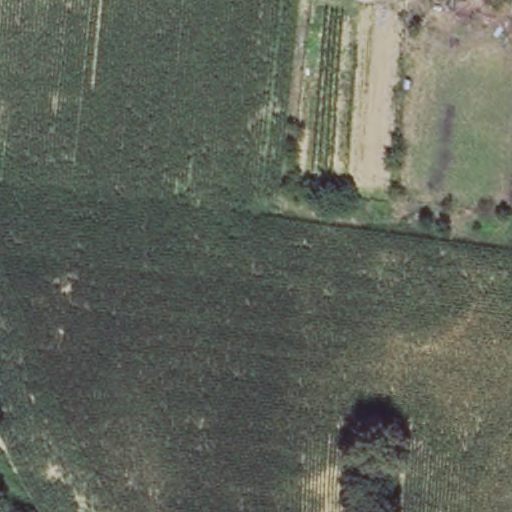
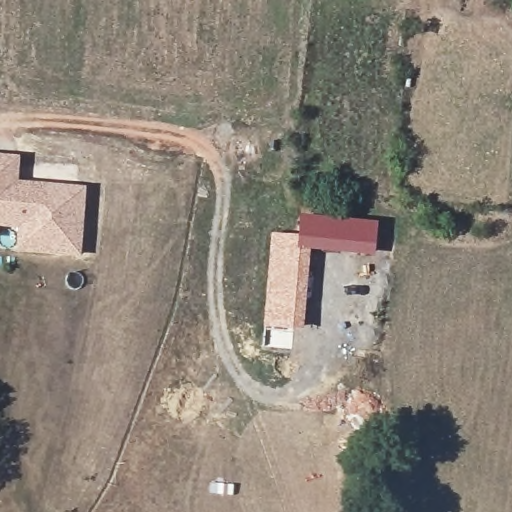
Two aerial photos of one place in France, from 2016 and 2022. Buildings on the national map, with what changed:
new [(19,182),(87,187),(81,256),(16,253),(17,231),(0,229),(0,155),(20,157),(19,182)]
new [(275,237),(302,240),(304,219),(378,227),(376,249),(303,241),(294,330),(265,327),(275,237)]

